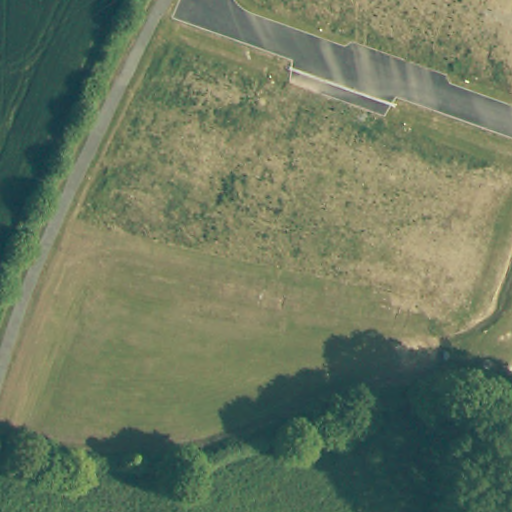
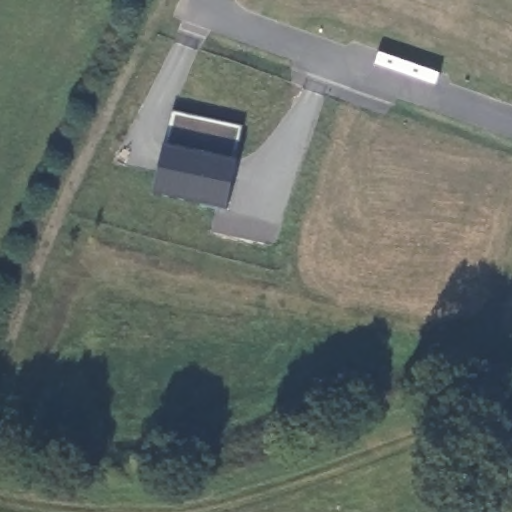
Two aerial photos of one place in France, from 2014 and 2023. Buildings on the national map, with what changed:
new [(164,144),(171,110),(240,126),(231,160),(239,162),(227,211),(155,195),(164,144)]

